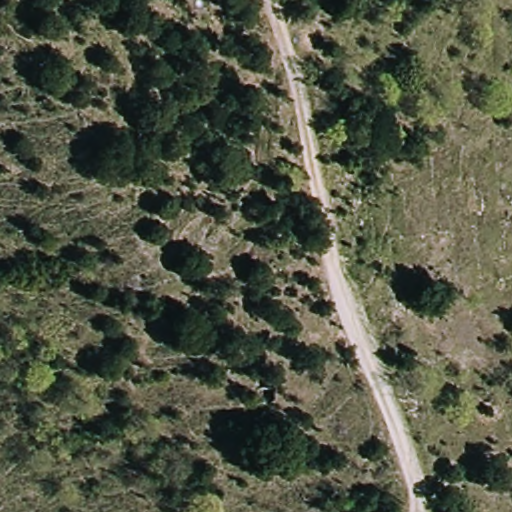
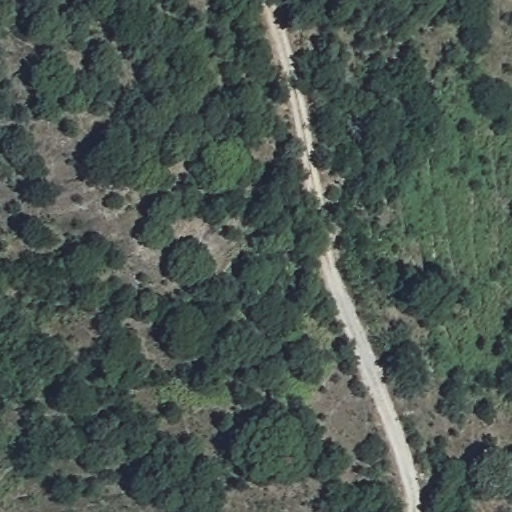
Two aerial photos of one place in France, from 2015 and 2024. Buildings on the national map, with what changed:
[]

